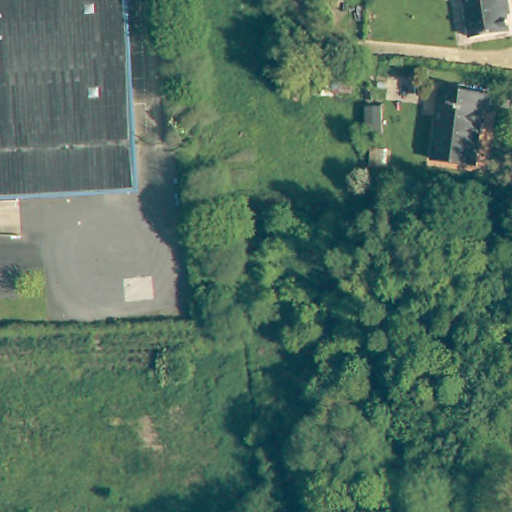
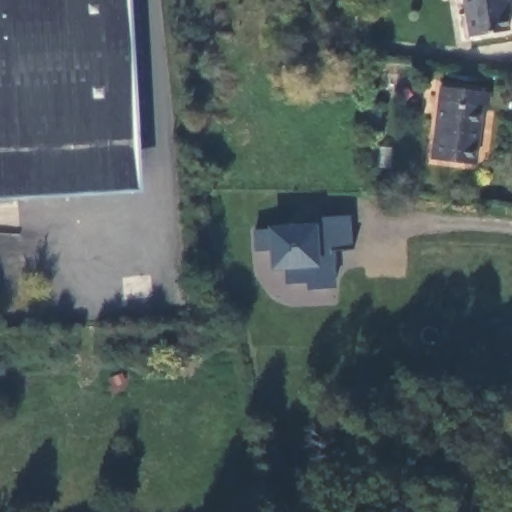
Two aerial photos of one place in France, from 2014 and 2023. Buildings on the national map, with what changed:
unchanged [(133,135),(96,137),(98,173),(0,179),(0,0),(125,0),(133,135)]
unchanged [(460,0),(501,0),(502,5),(500,5),(505,34),(466,40),(460,0)]
unchanged [(501,90),(499,107),(494,107),(486,164),(443,159),(453,84),(501,90)]
unchanged [(135,171),(98,173),(96,137),(133,135),(135,171)]
new [(267,230),(267,226),(300,224),(300,218),(351,215),(352,251),(332,251),(335,288),(307,290),(306,283),(284,285),(283,269),(270,270),(269,253),(253,253),(252,230),(267,230)]

